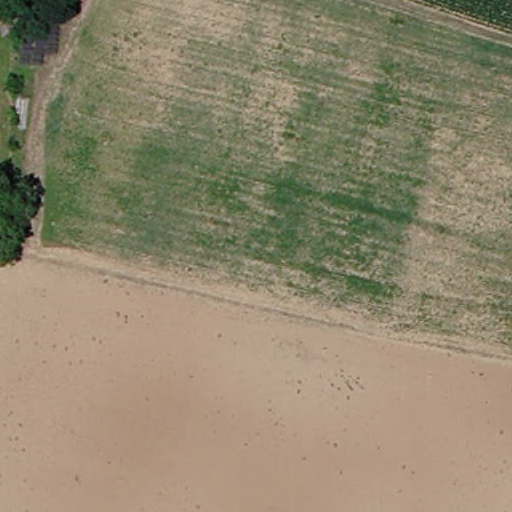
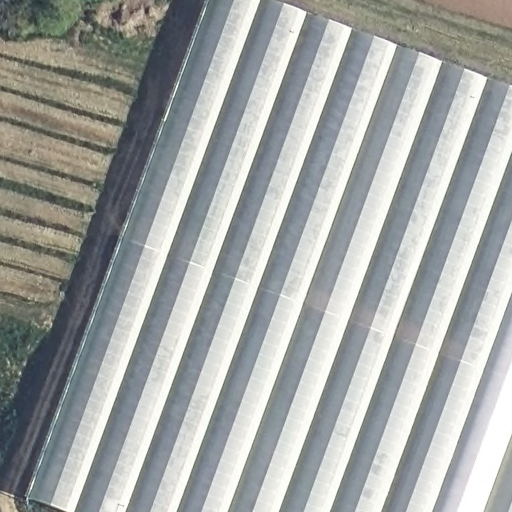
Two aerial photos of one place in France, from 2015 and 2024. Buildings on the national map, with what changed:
new [(208,0),(275,0),(512,86),(512,512),(66,512),(25,496),(208,0)]

